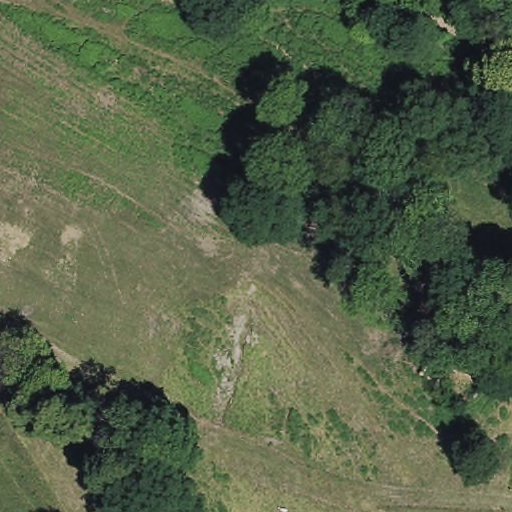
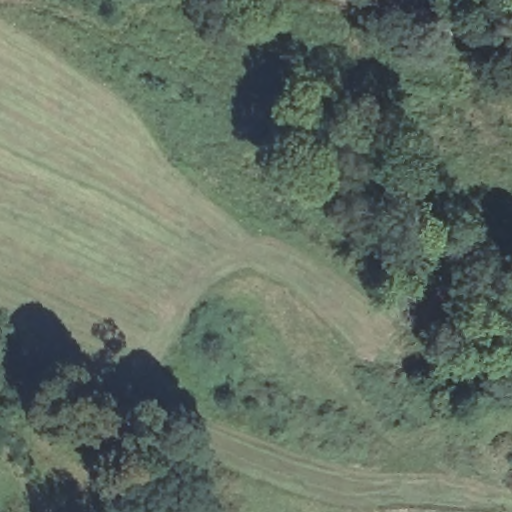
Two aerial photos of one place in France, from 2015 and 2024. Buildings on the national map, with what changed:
unchanged [(430,291),(446,303),(426,333),(409,322),(430,291)]
unchanged [(499,365),(463,416),(430,392),(466,340),(499,365)]

